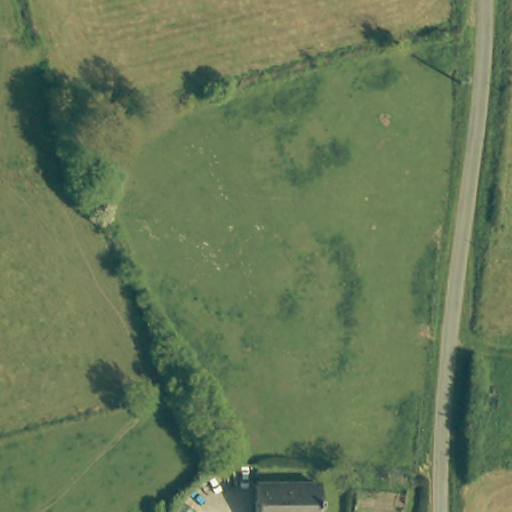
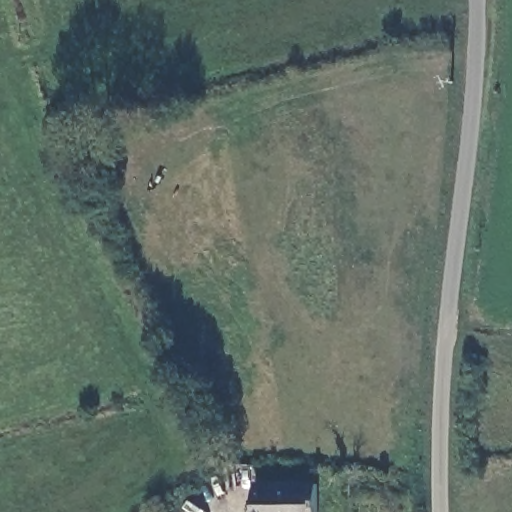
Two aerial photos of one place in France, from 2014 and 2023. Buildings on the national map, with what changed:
unchanged [(260,512),(258,489),(318,486),(319,512),(260,512)]

